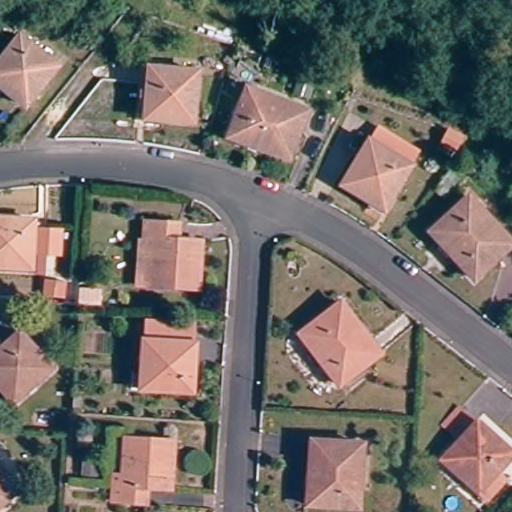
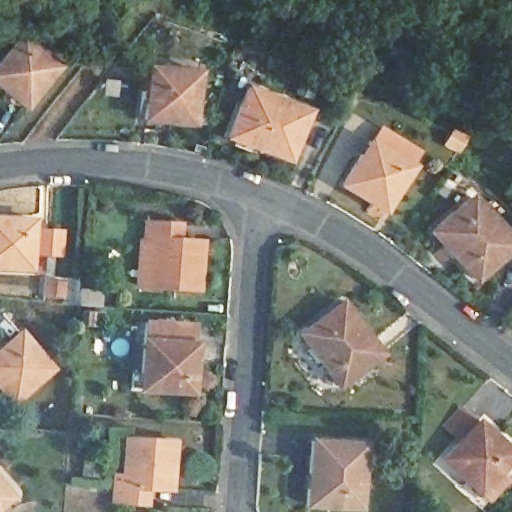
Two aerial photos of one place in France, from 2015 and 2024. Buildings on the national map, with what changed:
unchanged [(0,86),(0,58),(20,35),(52,62),(20,104),(0,86)]
unchanged [(145,116),(149,69),(197,72),(194,120),(145,116)]
unchanged [(226,136),(241,94),(300,114),(285,157),(226,136)]
unchanged [(345,186),(365,143),(405,161),(385,205),(345,186)]
unchanged [(469,276),(433,232),(467,205),(505,248),(469,276)]
unchanged [(0,265),(0,217),(31,220),(27,266),(0,265)]
unchanged [(134,291),(137,250),(141,249),(143,232),(186,236),(184,252),(199,254),(195,297),(134,291)]
unchanged [(322,316),(333,306),(355,331),(375,352),(337,385),(297,339),(322,316)]
unchanged [(0,390),(0,343),(12,332),(41,365),(6,397),(0,390)]
unchanged [(139,343),(152,345),(153,336),(182,339),(182,347),(193,348),(189,396),(136,390),(139,343)]
unchanged [(444,458),(476,420),(510,449),(480,488),(444,458)]
unchanged [(167,490),(160,488),(149,488),(147,503),(107,499),(108,483),(115,482),(119,433),(164,438),(163,453),(170,453),(167,490)]
unchanged [(305,505),(307,441),(360,444),(357,507),(305,505)]
unchanged [(12,492),(0,504),(0,478),(12,492)]

